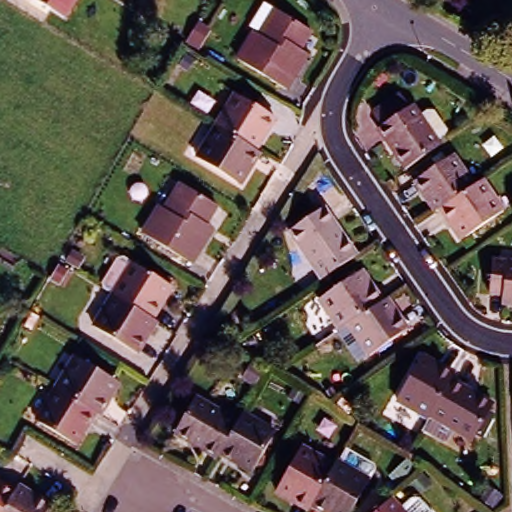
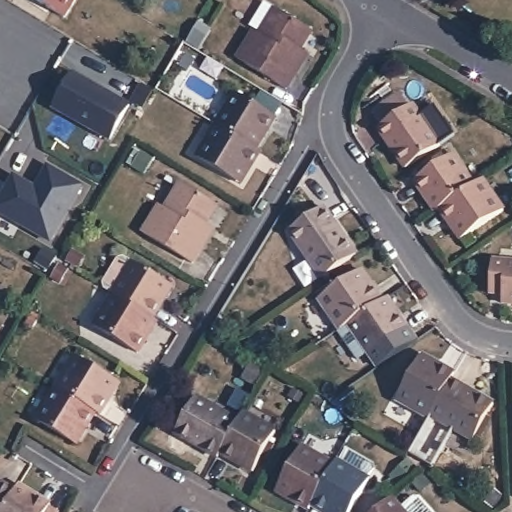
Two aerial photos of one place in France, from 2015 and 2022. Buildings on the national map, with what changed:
unchanged [(41,0),(74,0),(66,15),(41,0)]
unchanged [(310,61),(294,89),(245,59),(261,31),(262,29),(255,26),(271,0),(281,7),(318,29),(307,48),(315,53),(310,61)]
new [(77,76),(133,108),(113,143),(57,110),(77,76)]
unchanged [(274,113),(254,145),(215,122),(234,89),(274,113)]
unchanged [(380,123),(372,109),(399,91),(407,104),(411,101),(439,141),(404,165),(378,124),(380,123)]
unchanged [(235,177),(197,154),(215,122),(254,145),(259,148),(250,163),(240,180),(235,177)]
unchanged [(416,179),(455,154),(475,185),(442,207),(437,210),(416,179)]
new [(18,179),(31,186),(32,189),(38,194),(52,170),(85,190),(53,244),(0,213),(0,208),(18,179)]
unchanged [(451,221),(442,207),(475,185),(485,178),(506,209),(468,235),(463,238),(451,221)]
unchanged [(213,235),(197,263),(149,234),(165,205),(169,208),(184,182),(221,203),(209,223),(218,228),(213,235)]
unchanged [(289,227),(322,204),(357,254),(323,278),(289,227)]
unchanged [(494,288),(498,255),(512,257),(512,299),(507,299),(508,289),(494,288)]
unchanged [(133,263),(172,285),(154,317),(115,294),(133,263)]
unchanged [(319,299),(357,272),(368,289),(373,285),(383,300),(350,323),(341,329),(319,299)]
unchanged [(115,294),(154,317),(143,334),(147,337),(138,352),(96,327),(115,294)]
unchanged [(383,300),(387,298),(408,327),(370,353),(350,323),(383,300)]
unchanged [(429,416),(396,397),(422,352),(456,371),(452,378),(433,410),(430,414),(429,416)]
unchanged [(105,399),(97,413),(57,389),(77,356),(110,376),(117,379),(105,399)]
unchanged [(433,410),(452,378),(492,402),(472,439),(430,414),(433,410)]
unchanged [(57,389),(97,413),(78,443),(38,419),(57,389)]
unchanged [(174,434),(195,398),(236,421),(218,452),(215,457),(174,434)]
unchanged [(236,421),(239,415),(274,435),(252,473),(218,452),(236,421)]
unchanged [(272,489),(297,444),(326,461),(302,503),(302,504),(272,489)]
unchanged [(316,509),(302,503),(326,461),(328,458),(363,478),(344,512),(321,512),(316,509)]
unchanged [(10,491),(0,506),(0,484),(10,491)]
unchanged [(54,512),(0,512),(0,506),(10,491),(13,486),(45,506),(54,512)]
unchanged [(407,512),(369,512),(391,494),(407,512)]

